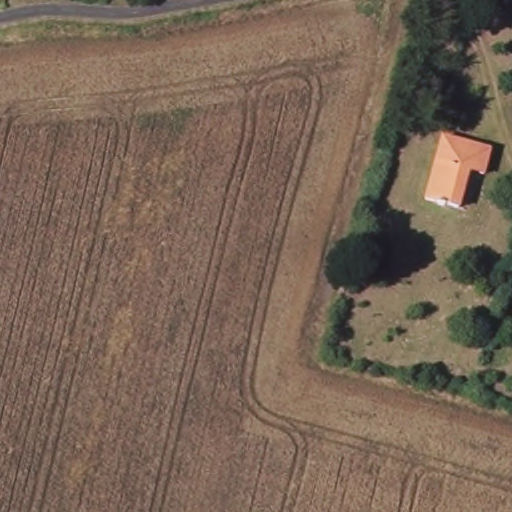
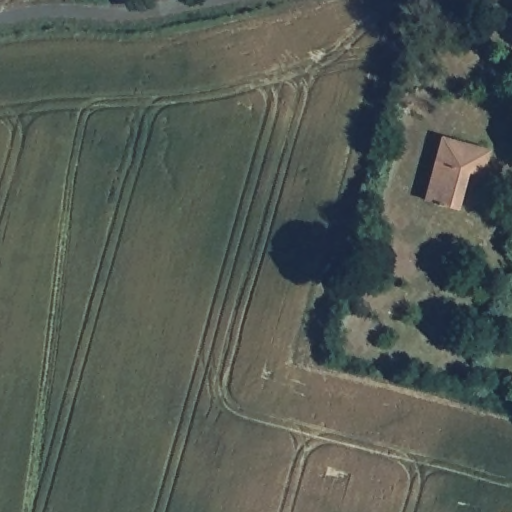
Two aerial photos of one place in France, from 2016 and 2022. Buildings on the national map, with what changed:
unchanged [(491,149),(483,174),(468,170),(457,206),(425,197),(445,135),(491,149)]

